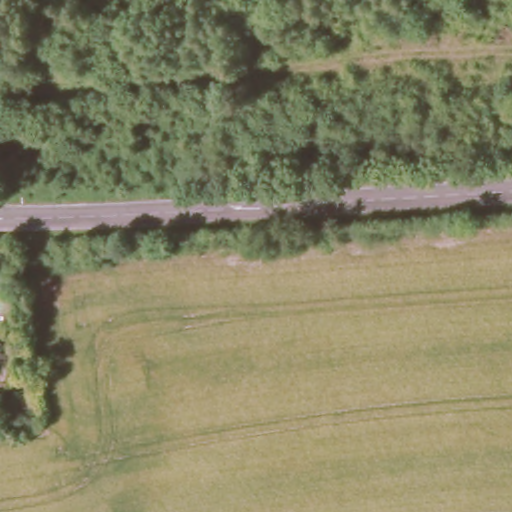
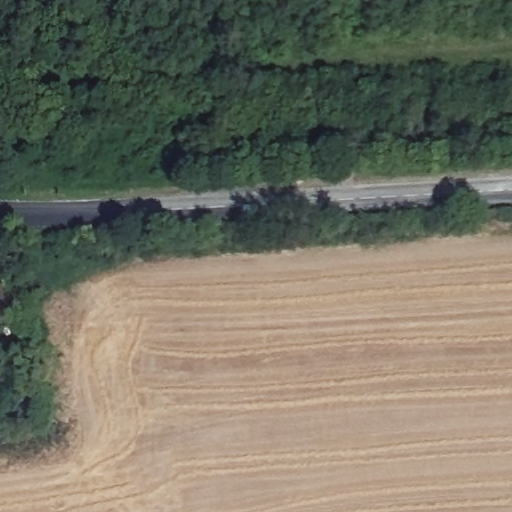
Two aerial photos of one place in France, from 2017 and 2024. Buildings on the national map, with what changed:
[]

